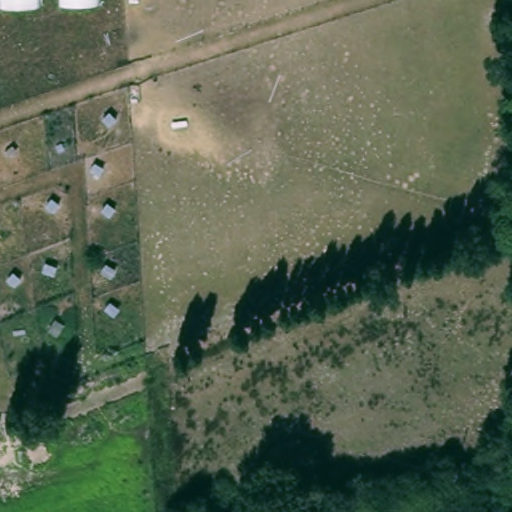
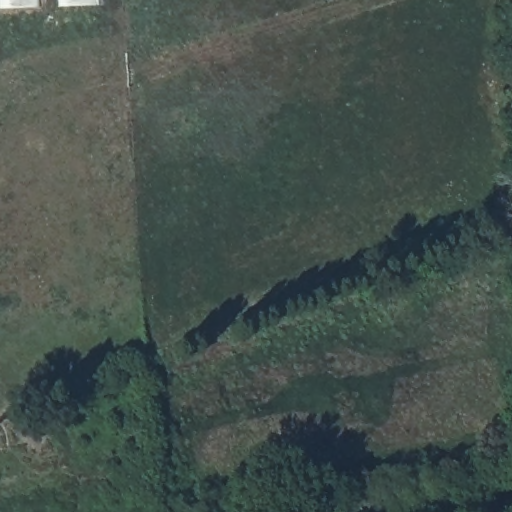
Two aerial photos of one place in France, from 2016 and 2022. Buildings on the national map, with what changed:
unchanged [(0,6),(0,0),(45,0),(45,5),(0,6)]
unchanged [(103,4),(63,4),(62,0),(102,0),(103,4)]

